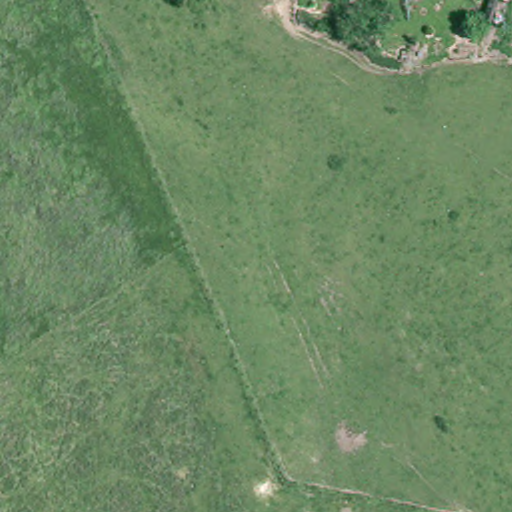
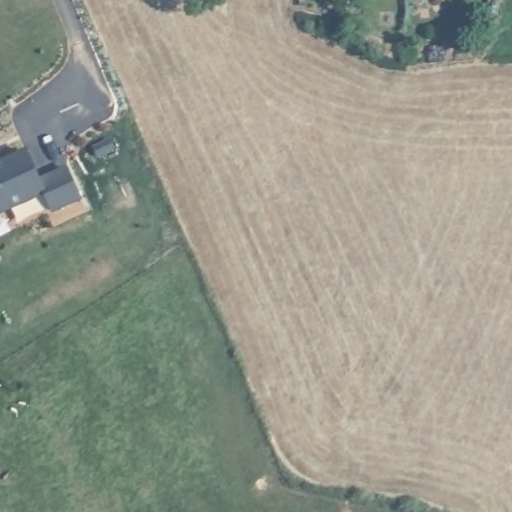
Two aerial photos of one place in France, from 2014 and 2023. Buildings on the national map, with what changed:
new [(51,215),(43,198),(0,217),(0,160),(24,149),(39,178),(69,163),(83,201),(51,215)]

